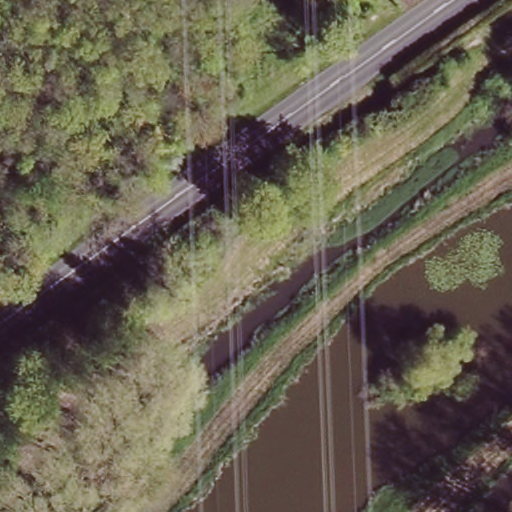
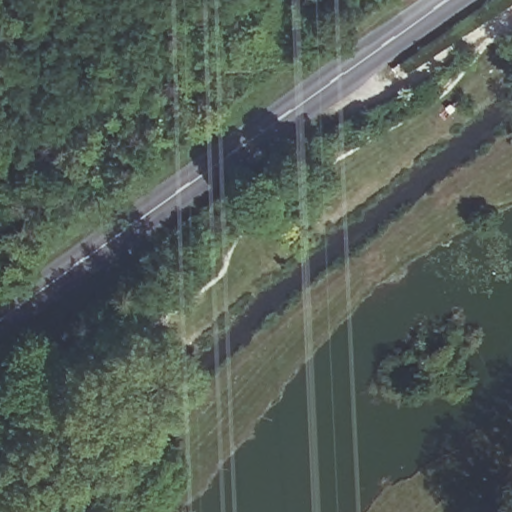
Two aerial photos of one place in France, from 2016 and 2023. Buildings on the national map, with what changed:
unchanged [(397,0),(406,0),(400,4),(397,0)]

